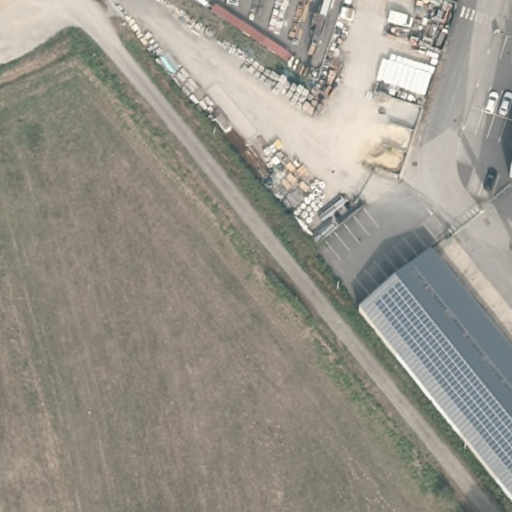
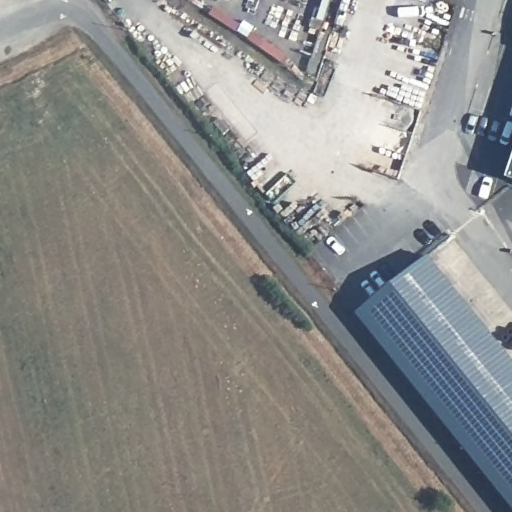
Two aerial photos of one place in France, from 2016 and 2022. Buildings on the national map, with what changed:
unchanged [(512,164),(512,179),(507,177),(512,164)]
unchanged [(512,361),(512,505),(497,486),(356,313),(428,258),(512,361)]

